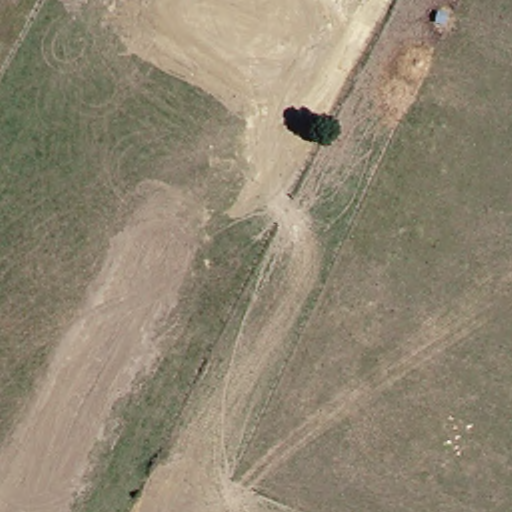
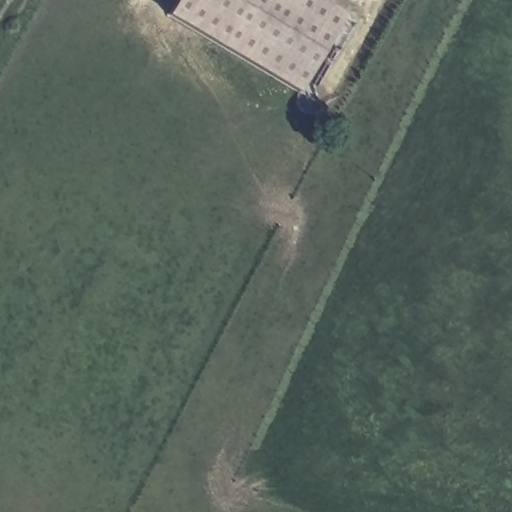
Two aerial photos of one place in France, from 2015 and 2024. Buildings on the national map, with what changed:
new [(165,16),(174,0),(319,0),(344,14),(298,93),(165,16)]
demolished [(315,10),(316,8),(303,0),(344,0),(331,20),(315,10)]

